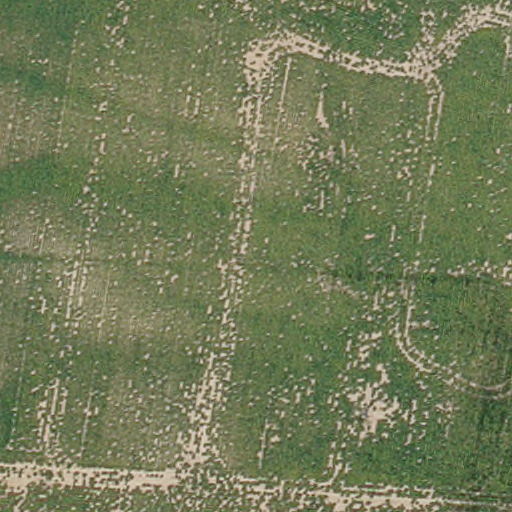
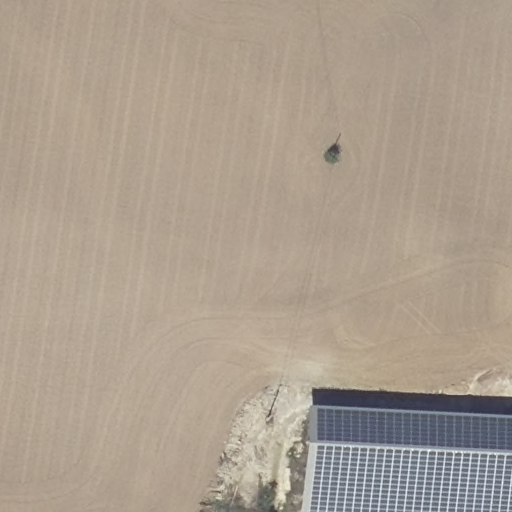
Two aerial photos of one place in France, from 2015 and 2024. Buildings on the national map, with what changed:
new [(512,423),(512,512),(299,512),(306,410),(512,423)]

